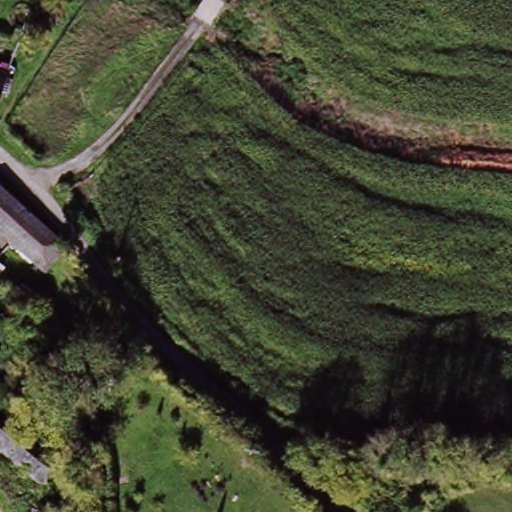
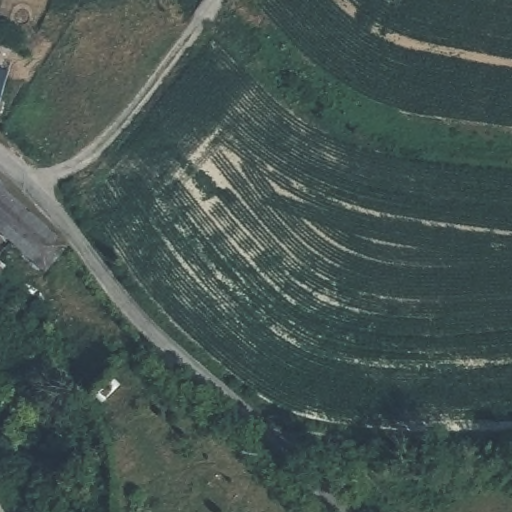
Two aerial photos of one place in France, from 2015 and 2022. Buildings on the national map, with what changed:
unchanged [(0,94),(0,74),(5,75),(0,94)]
unchanged [(0,191),(0,177),(7,183),(0,191)]
unchanged [(35,278),(0,247),(0,191),(62,249),(35,278)]
unchanged [(0,453),(0,415),(37,444),(42,449),(53,457),(35,480),(22,471),(0,453)]
unchanged [(23,512),(35,480),(54,487),(44,512),(23,512)]

